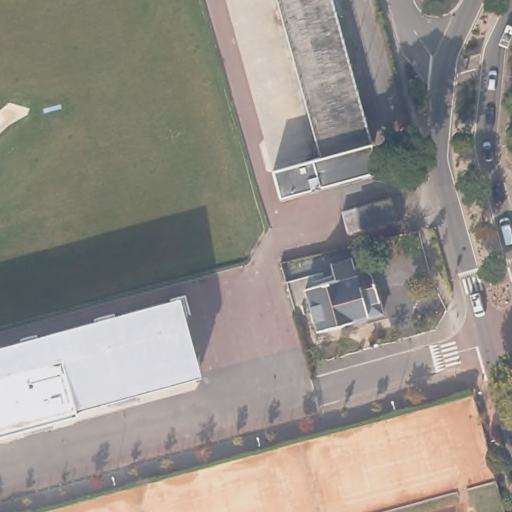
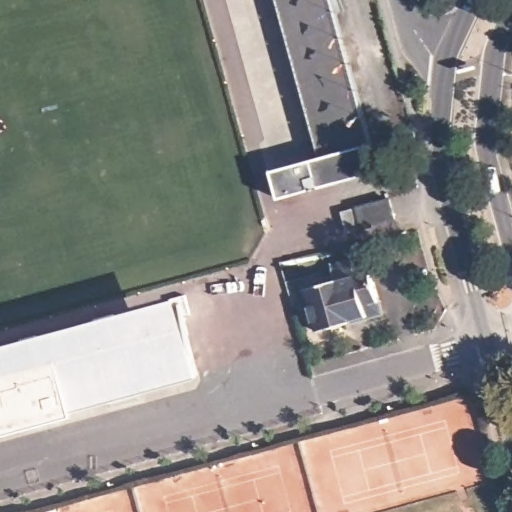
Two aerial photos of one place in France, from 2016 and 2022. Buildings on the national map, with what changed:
unchanged [(284,203),(277,175),(324,162),(278,0),(332,0),(382,174),(284,203)]
unchanged [(341,215),(357,210),(389,202),(394,220),(362,229),(346,234),(341,215)]
unchanged [(352,269),(366,266),(379,314),(339,324),(337,327),(336,329),(331,329),(330,329),(328,327),(313,331),(302,290),(332,281),(328,265),(349,259),(352,269)]
unchanged [(179,299),(203,381),(77,416),(78,419),(0,440),(0,349),(179,299)]

